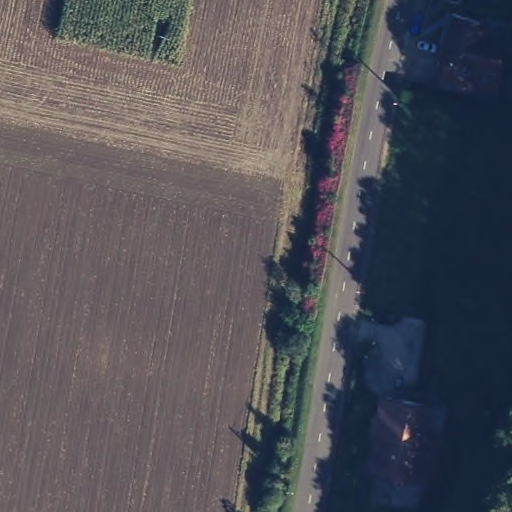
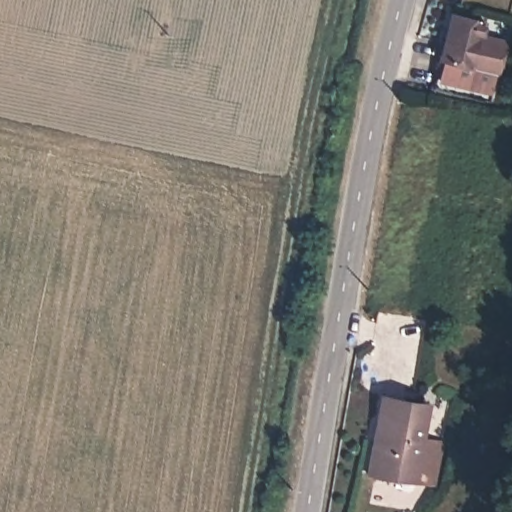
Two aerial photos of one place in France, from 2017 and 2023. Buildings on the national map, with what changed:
unchanged [(463,76),(474,30),(507,38),(496,84),(463,76)]
unchanged [(372,443),(379,408),(424,417),(417,452),(422,452),(415,490),(371,482),(366,481),(372,443)]

